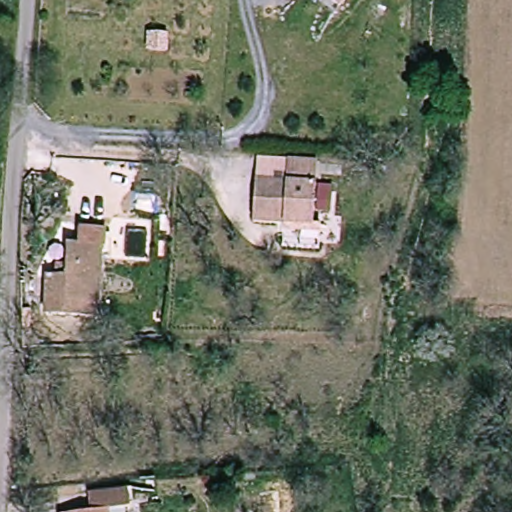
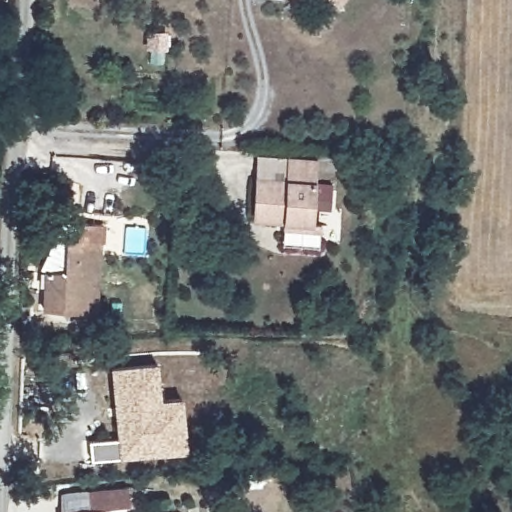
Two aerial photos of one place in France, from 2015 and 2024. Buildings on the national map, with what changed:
unchanged [(336,0),(354,0),(353,1),(346,9),(336,0)]
unchanged [(324,165),(318,230),(258,225),(262,182),(293,185),(295,163),(324,165)]
unchanged [(79,242),(81,224),(104,226),(100,313),(45,310),(49,275),(56,275),(57,262),(66,262),(67,241),(79,242)]
new [(163,398),(183,401),(186,436),(170,438),(173,453),(92,461),(91,442),(118,439),(112,368),(157,365),(163,398)]
unchanged [(91,488),(134,487),(135,501),(130,502),(130,512),(66,512),(66,506),(92,503),(91,488)]

